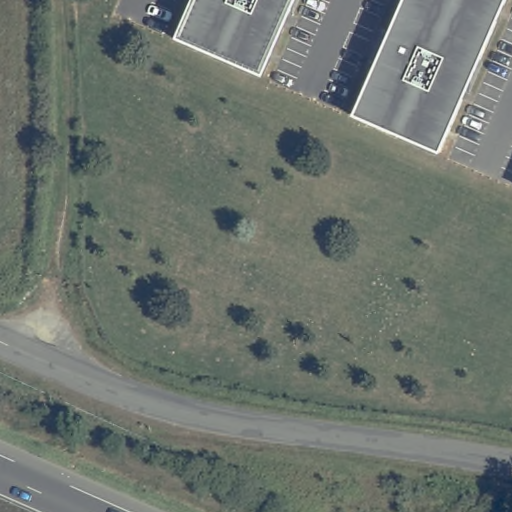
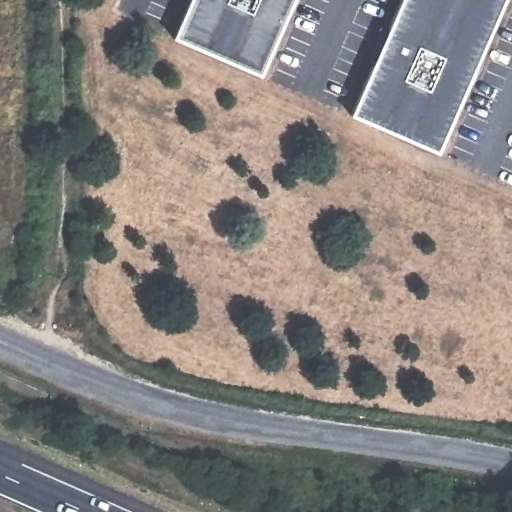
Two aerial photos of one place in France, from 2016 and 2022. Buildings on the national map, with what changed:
unchanged [(292,0),(264,65),(257,80),(221,65),(171,42),(190,0),(292,0)]
unchanged [(401,0),(503,0),(463,91),(434,157),(349,120),(373,65),(401,0)]

